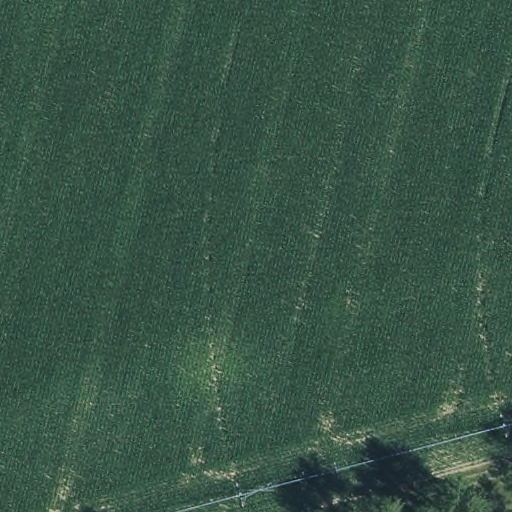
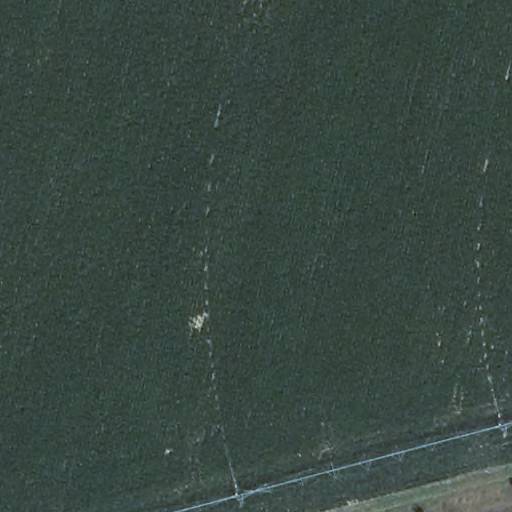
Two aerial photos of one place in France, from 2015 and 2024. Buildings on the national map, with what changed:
[]

